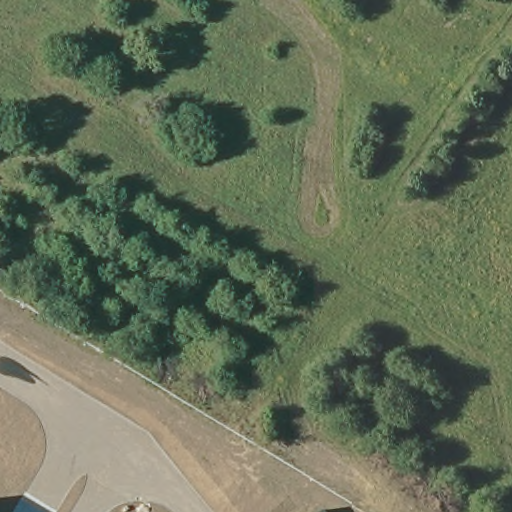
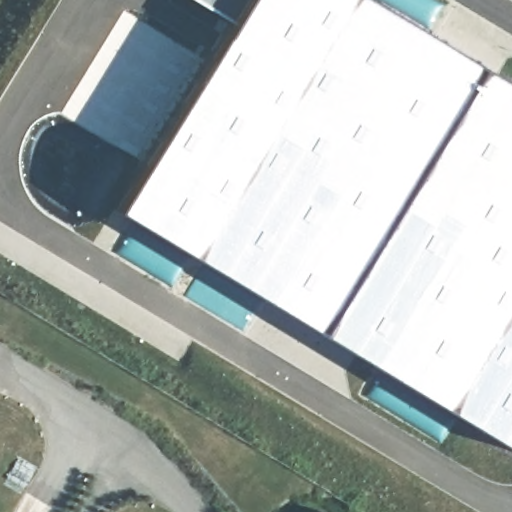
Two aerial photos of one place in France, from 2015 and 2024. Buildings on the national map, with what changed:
new [(476,64),(512,86),(512,446),(318,331),(110,210),(226,16),(195,0),(371,0),(476,64)]
unchanged [(322,512),(318,512),(321,510),(322,512)]

